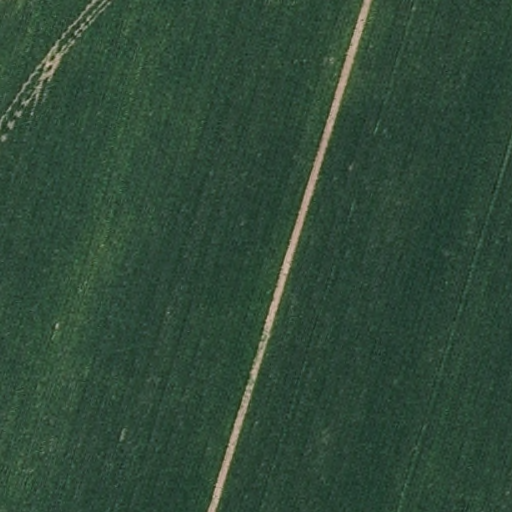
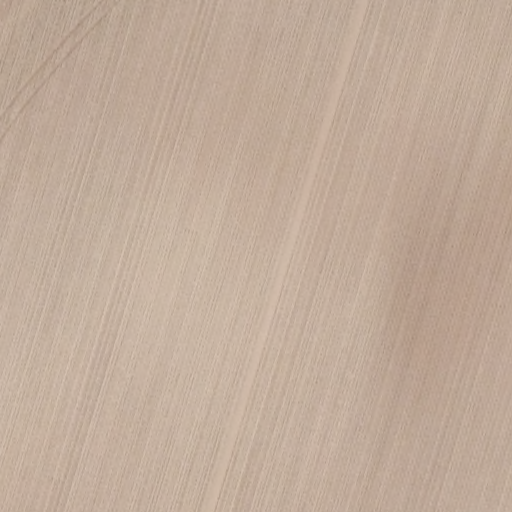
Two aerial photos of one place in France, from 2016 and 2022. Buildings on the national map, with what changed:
[]

